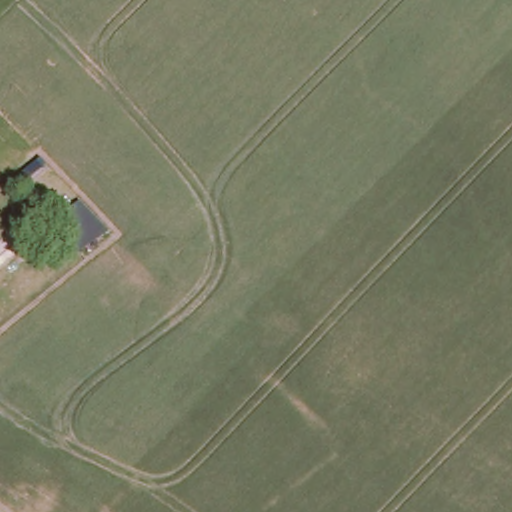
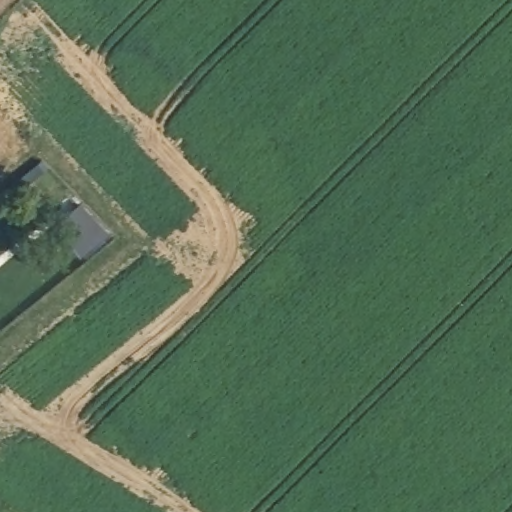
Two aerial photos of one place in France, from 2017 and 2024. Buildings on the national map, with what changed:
unchanged [(48,169),(13,198),(7,192),(42,163),(48,169)]
unchanged [(52,227),(77,209),(81,206),(108,234),(104,237),(79,255),(52,227)]

